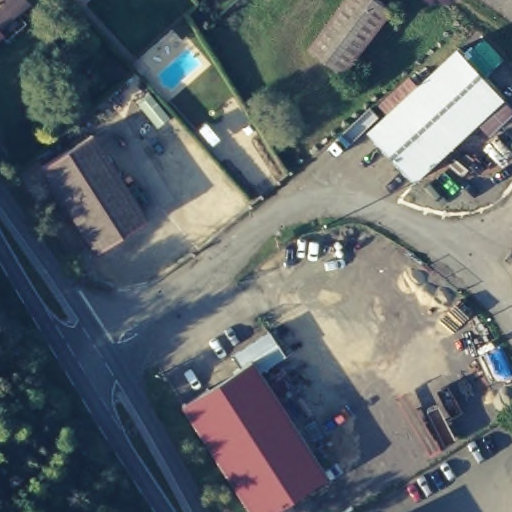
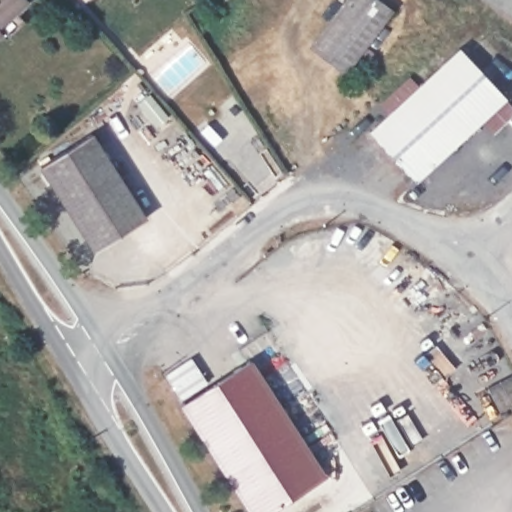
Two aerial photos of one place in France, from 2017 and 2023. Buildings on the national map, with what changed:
unchanged [(0,23),(0,0),(23,0),(0,23)]
unchanged [(313,52),(351,0),(374,0),(390,11),(346,74),(313,52)]
unchanged [(512,101),(512,117),(495,131),(484,118),(417,177),(370,127),(465,45),(510,96),(509,97),(512,101)]
unchanged [(96,252),(43,170),(95,137),(148,218),(96,252)]
unchanged [(253,512),(186,411),(237,375),(227,361),(257,339),(268,353),(256,362),(332,472),(269,512),(253,512)]

